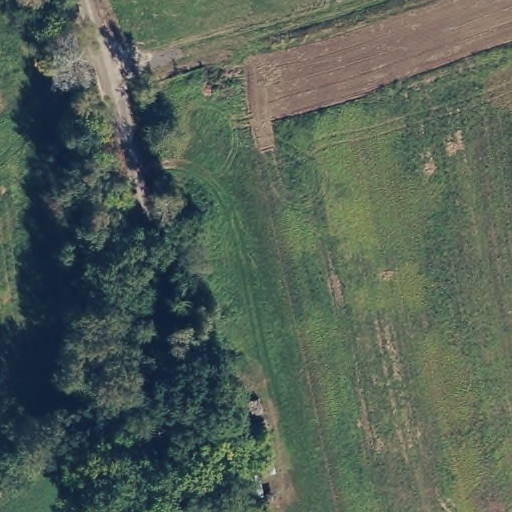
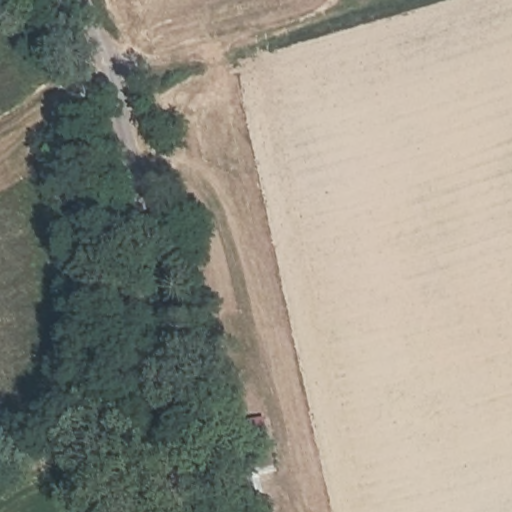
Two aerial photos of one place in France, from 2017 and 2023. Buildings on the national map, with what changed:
unchanged [(280,472),(250,480),(238,425),(265,418),(280,472)]

